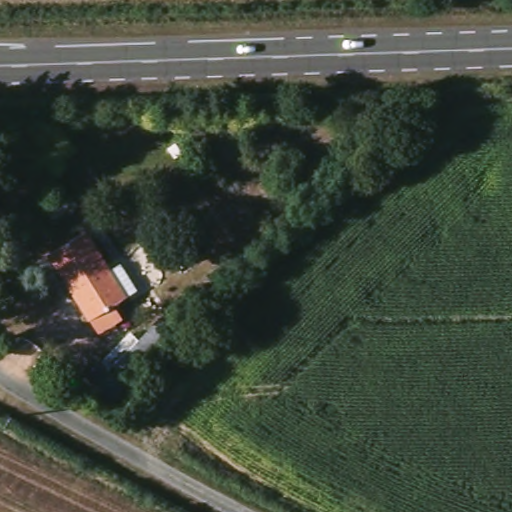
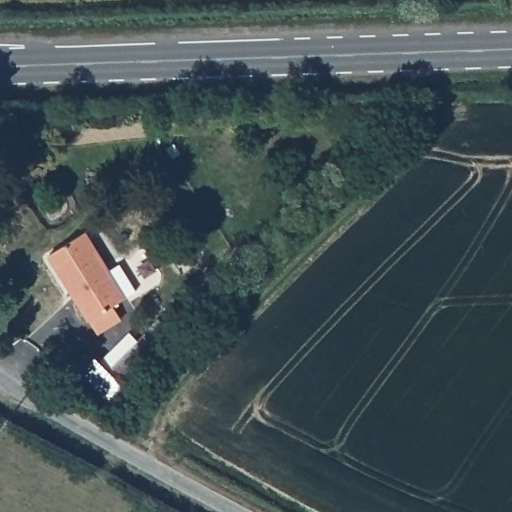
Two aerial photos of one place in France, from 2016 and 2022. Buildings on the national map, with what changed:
unchanged [(145,284),(132,292),(98,315),(56,254),(91,230),(115,268),(129,258),(145,284)]
unchanged [(126,380),(109,367),(131,336),(139,339),(159,318),(171,328),(126,380)]

